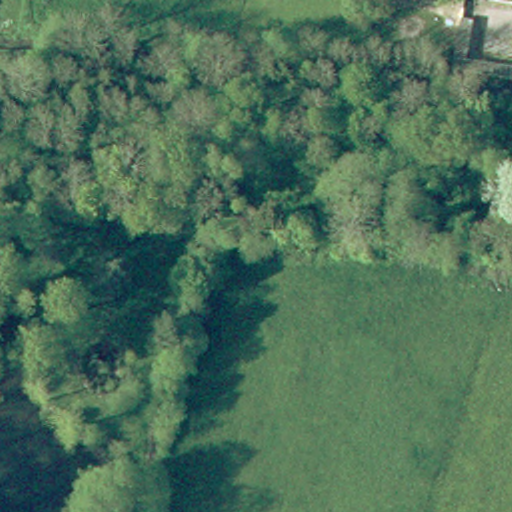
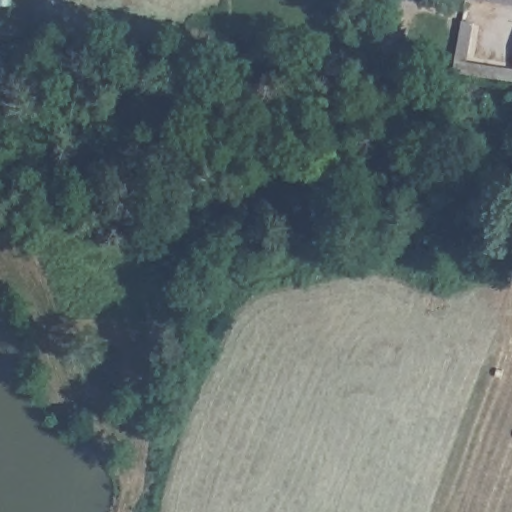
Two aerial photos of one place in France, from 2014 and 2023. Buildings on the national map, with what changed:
unchanged [(512,7),(461,0),(512,0),(512,7)]
unchanged [(448,63),(512,72),(512,84),(447,75),(448,63)]

